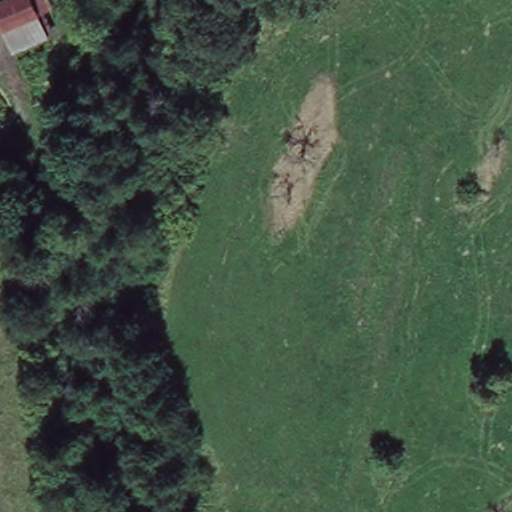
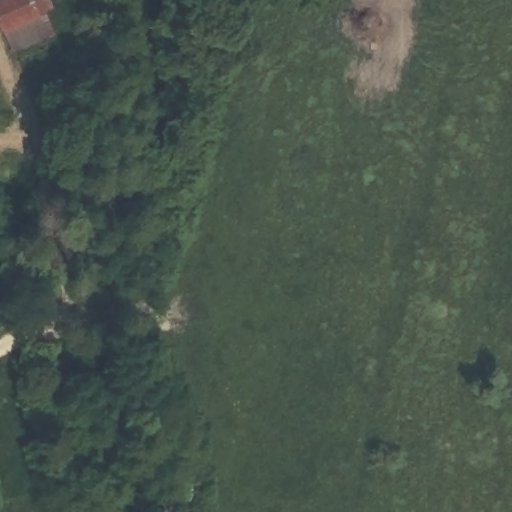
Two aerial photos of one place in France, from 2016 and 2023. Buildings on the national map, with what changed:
unchanged [(15,55),(5,30),(0,14),(0,0),(50,0),(54,10),(39,16),(48,41),(15,55)]

